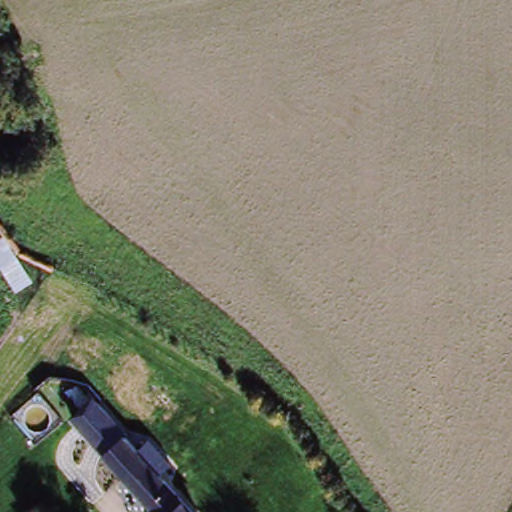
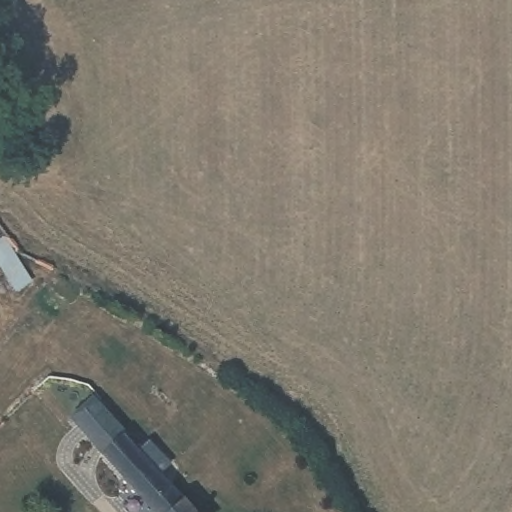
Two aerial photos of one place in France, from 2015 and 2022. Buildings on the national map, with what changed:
unchanged [(125,424),(133,434),(143,426),(175,466),(165,475),(194,512),(155,512),(81,420),(105,401),(112,409),(118,404),(130,419),(125,424)]

